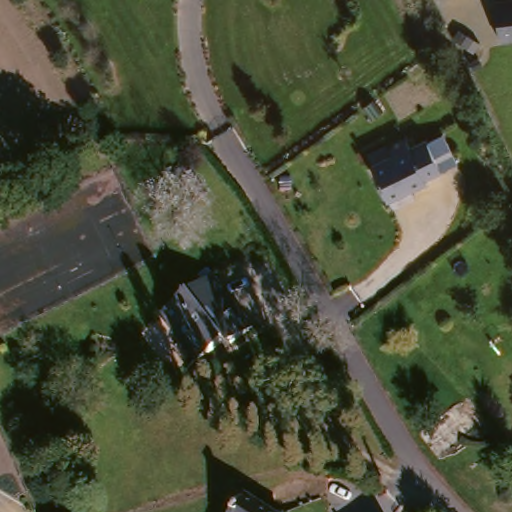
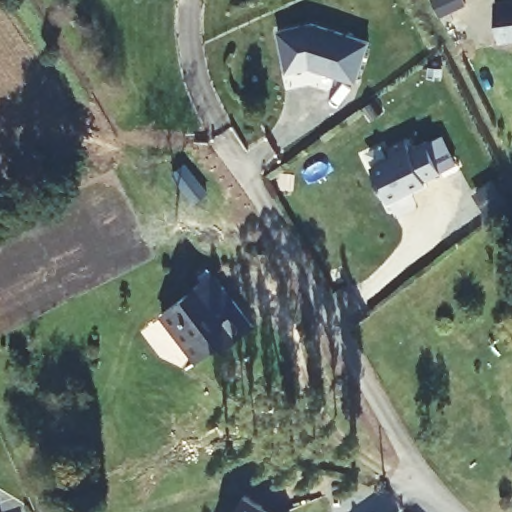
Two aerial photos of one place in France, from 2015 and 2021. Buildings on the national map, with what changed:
unchanged [(501,40),(495,2),(512,0),(512,39),(501,40)]
new [(311,23),(370,42),(357,82),(310,67),(286,73),(277,31),(311,23)]
unchanged [(371,167),(391,156),(386,147),(403,138),(408,148),(425,140),(426,141),(441,133),(454,160),(439,168),(440,169),(423,178),(424,180),(387,200),(371,167)]
unchanged [(209,347),(183,365),(148,318),(173,299),(200,279),(219,305),(239,331),(212,351),(209,347)]
demolished [(468,426),(429,455),(428,454),(411,431),(451,402),(468,426)]
unchanged [(266,512),(222,512),(234,492),(266,512)]

